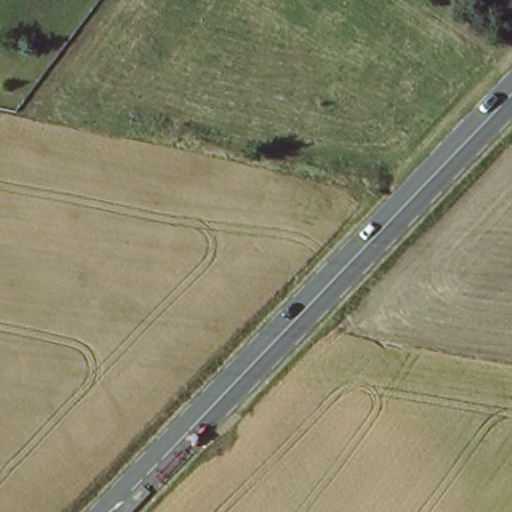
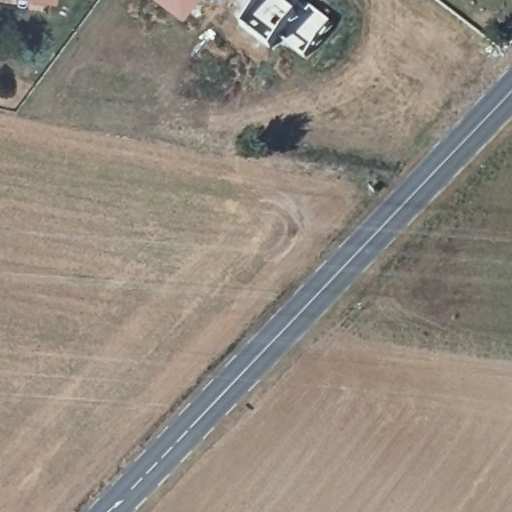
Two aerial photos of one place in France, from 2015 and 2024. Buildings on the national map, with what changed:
new [(53,1),(48,0),(54,0),(53,1)]
new [(176,15),(158,0),(188,0),(176,15)]
new [(267,0),(280,0),(296,12),(276,38),(269,47),(243,28),(267,0)]
new [(296,12),(299,15),(308,5),(333,24),(305,60),(276,38),(296,12)]

